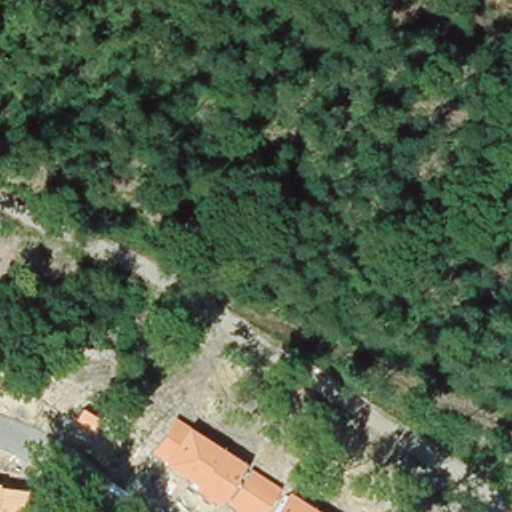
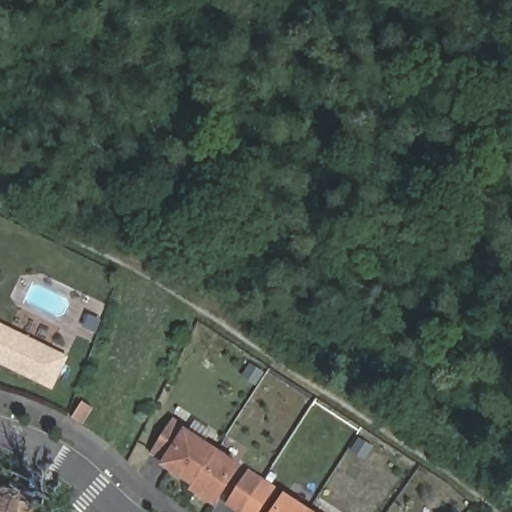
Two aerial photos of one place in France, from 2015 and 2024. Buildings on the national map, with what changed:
new [(65,357),(52,385),(0,360),(0,325),(65,357)]
unchanged [(217,506),(190,490),(194,485),(162,464),(149,453),(173,418),(185,428),(243,463),(217,506)]
unchanged [(263,512),(239,512),(227,504),(250,470),(280,487),(263,512)]
unchanged [(25,490),(22,512),(0,512),(0,487),(25,490)]
unchanged [(318,512),(272,512),(286,492),(318,512)]

